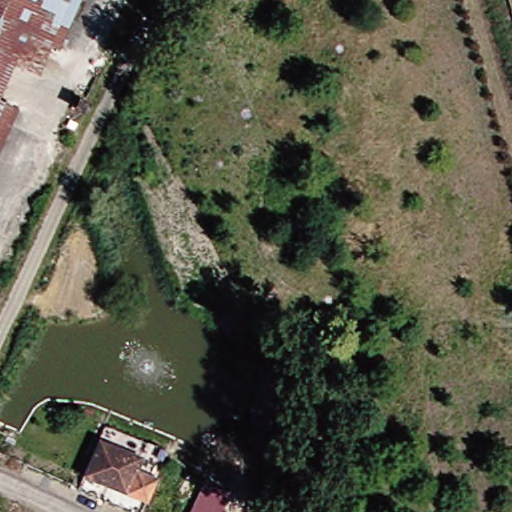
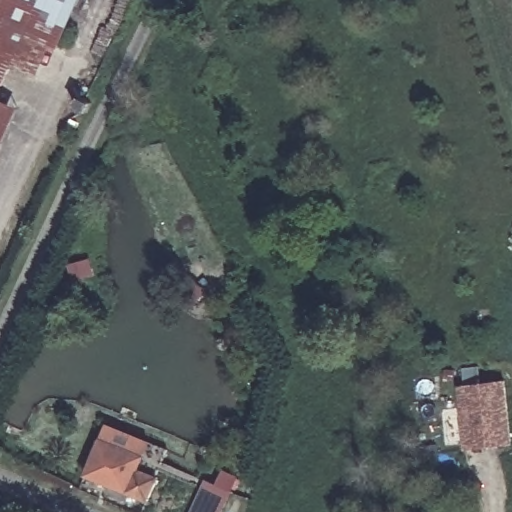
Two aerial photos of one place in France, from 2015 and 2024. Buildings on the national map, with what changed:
unchanged [(80,0),(59,46),(52,43),(38,72),(15,60),(0,95),(0,0),(80,0)]
unchanged [(19,108),(0,151),(0,99),(19,108)]
new [(503,381),(511,445),(465,451),(457,386),(503,381)]
unchanged [(146,471),(164,480),(152,507),(91,475),(107,442),(151,461),(146,471)]
new [(205,480),(232,492),(222,512),(190,512),(205,480)]

